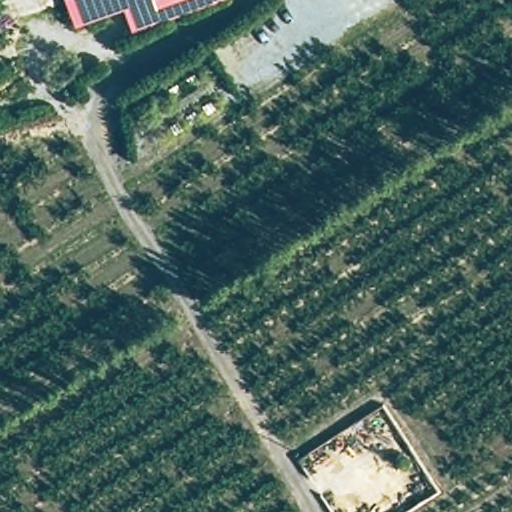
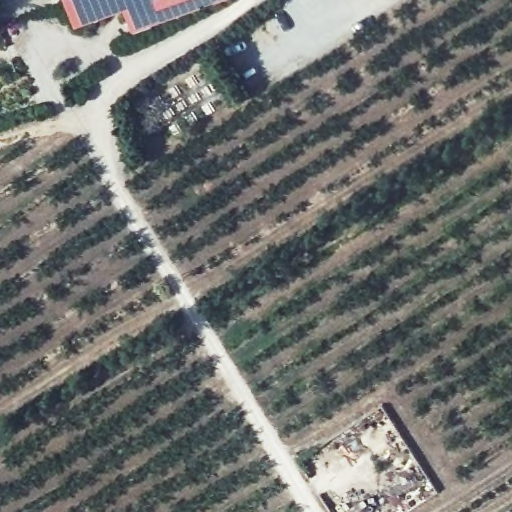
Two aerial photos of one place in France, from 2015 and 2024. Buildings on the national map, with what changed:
unchanged [(8,0),(55,0),(15,15),(8,0)]
unchanged [(123,9),(77,25),(68,0),(213,0),(132,29),(123,9)]

